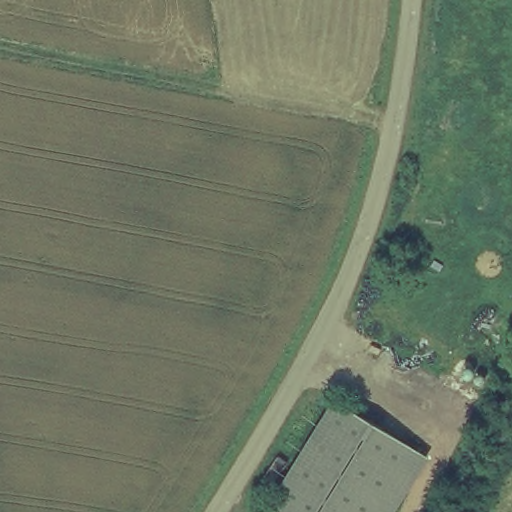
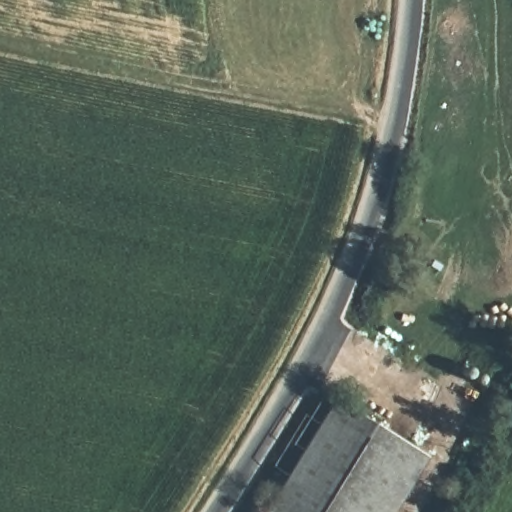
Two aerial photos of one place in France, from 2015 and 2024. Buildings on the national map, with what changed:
unchanged [(340,397),(433,455),(397,512),(271,512),(340,397)]

